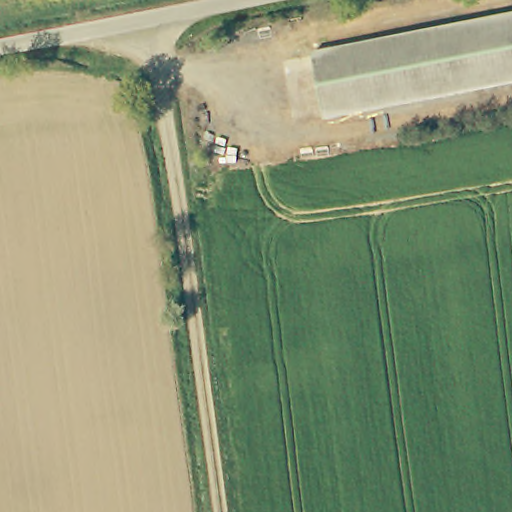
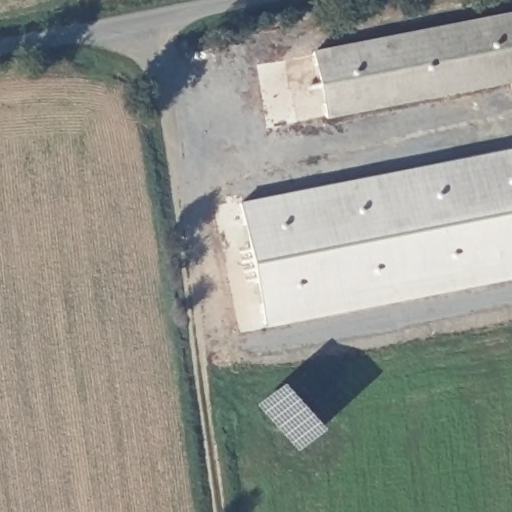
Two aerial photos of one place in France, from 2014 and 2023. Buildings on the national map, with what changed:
unchanged [(308,53),(512,13),(512,82),(321,118),(308,53)]
new [(265,327),(240,204),(512,150),(512,279),(265,327)]

